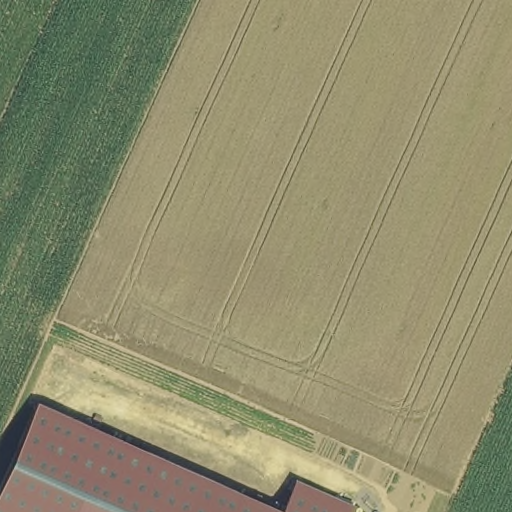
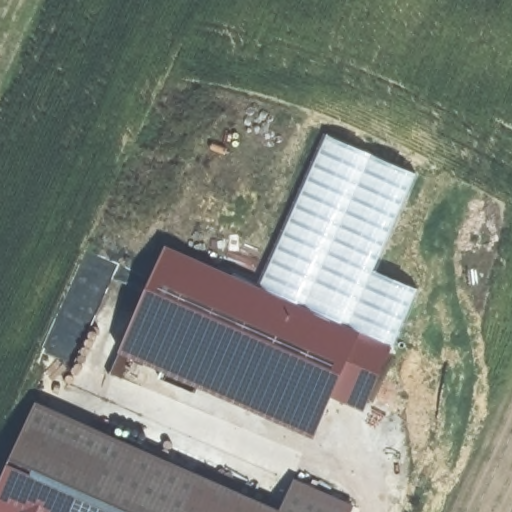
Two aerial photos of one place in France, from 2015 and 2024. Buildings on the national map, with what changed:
new [(418,174),(377,272),(424,292),(396,348),(260,283),(326,136),(418,174)]
new [(260,283),(396,348),(369,412),(331,395),(314,438),(121,352),(148,288),(165,247),(260,283)]
unchanged [(294,477),(355,507),(353,512),(0,512),(0,485),(37,402),(279,510),(294,477)]

